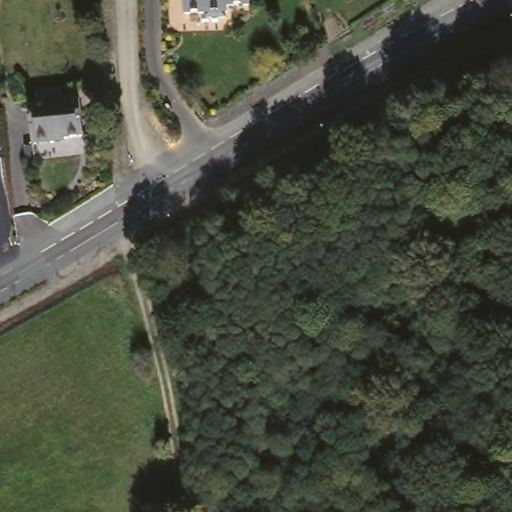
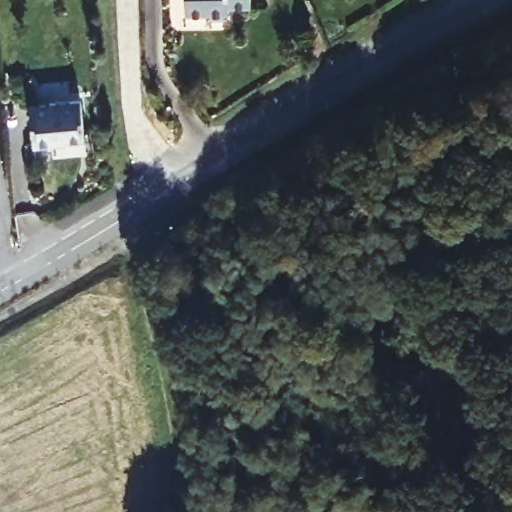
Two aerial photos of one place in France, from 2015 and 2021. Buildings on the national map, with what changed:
unchanged [(231,4),(231,10),(228,10),(228,15),(210,15),(210,10),(188,11),(188,0),(252,0),(253,3),(231,4)]
unchanged [(84,136),(53,139),(54,141),(33,143),(29,105),(80,99),(84,136)]

